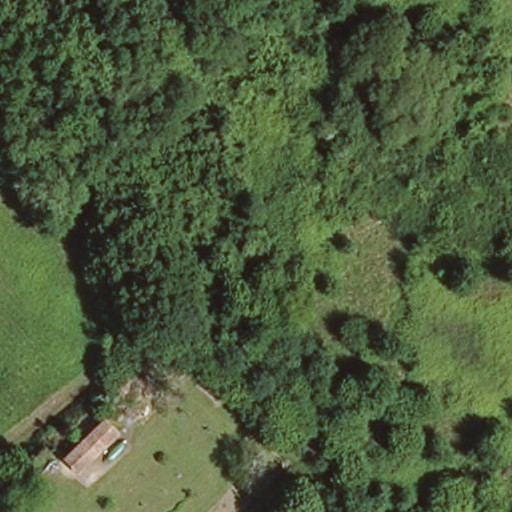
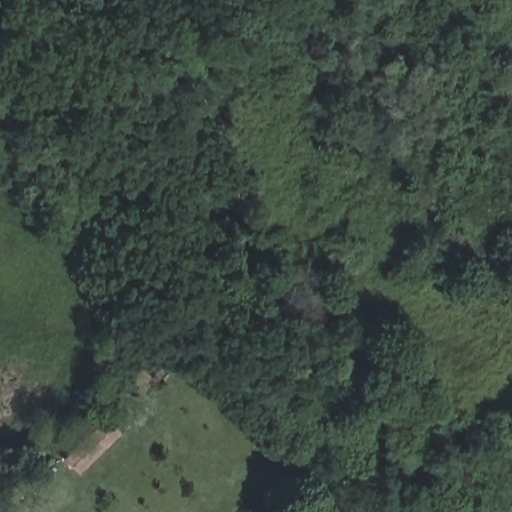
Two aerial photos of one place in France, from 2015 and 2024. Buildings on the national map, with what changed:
unchanged [(104,420),(117,435),(79,469),(65,455),(104,420)]

